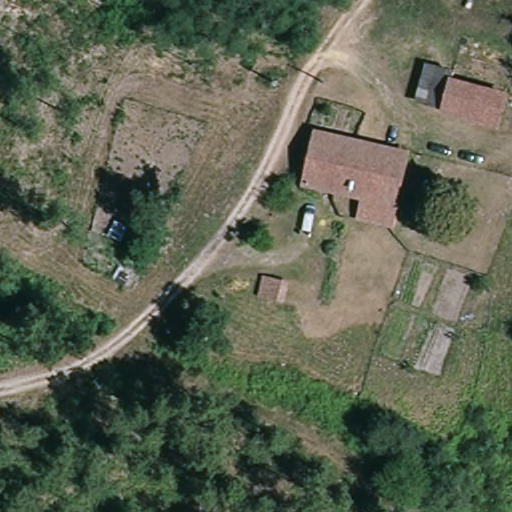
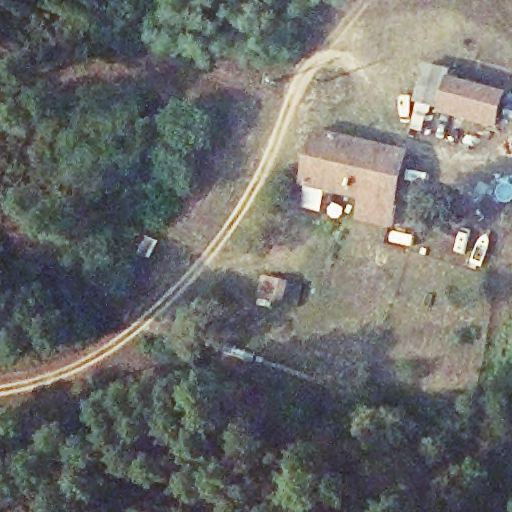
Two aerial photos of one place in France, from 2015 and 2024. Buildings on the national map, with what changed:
unchanged [(450,71),(458,32),(482,37),(478,57),(512,67),(512,69),(498,126),(436,107),(412,101),(420,61),(450,71)]
unchanged [(312,129),(405,147),(390,216),(355,210),(358,193),(302,183),(312,129)]
unchanged [(259,286),(260,267),(285,270),(283,288),(259,286)]

